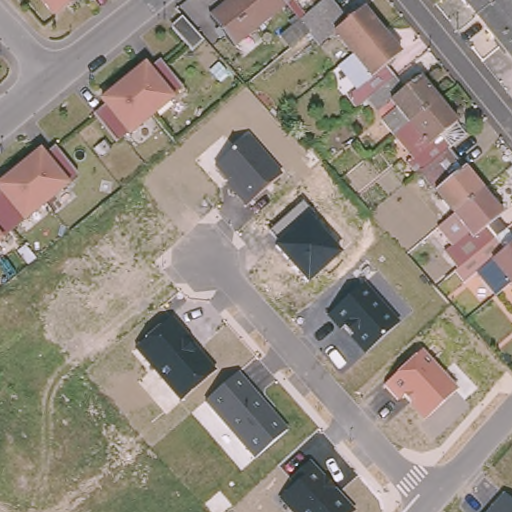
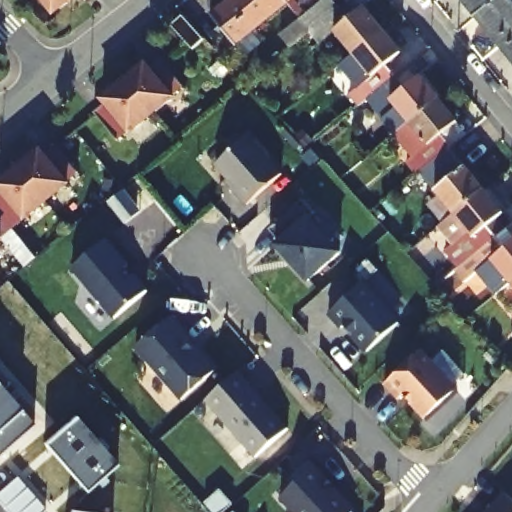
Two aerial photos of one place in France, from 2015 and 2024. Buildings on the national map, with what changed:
unchanged [(40,0),(72,0),(53,15),(40,0)]
unchanged [(230,44),(206,15),(225,0),(280,0),(282,2),(230,44)]
unchanged [(280,0),(284,0),(282,2),(280,0)]
unchanged [(461,0),(487,0),(472,12),(461,0)]
unchanged [(496,42),(472,12),(487,0),(512,0),(512,29),(496,42)]
unchanged [(334,27),(319,39),(309,28),(290,44),(280,32),(287,26),(281,19),(295,7),(300,13),(311,26),(338,4),(347,16),(363,3),(382,26),(352,50),(334,27)]
unchanged [(357,85),(338,62),(352,50),(382,26),(400,48),(385,61),(394,74),(367,96),(358,103),(348,92),(357,85)]
unchanged [(512,29),(512,62),(496,42),(512,29)]
unchanged [(163,64),(182,87),(171,97),(172,98),(151,116),(123,83),(145,65),(148,69),(160,60),(163,64)]
unchanged [(395,131),(367,96),(394,74),(402,84),(419,71),(439,95),(395,131)]
unchanged [(151,116),(129,134),(127,132),(116,142),(97,118),(93,114),(105,105),(101,100),(123,83),(151,116)]
unchanged [(420,168),(417,170),(407,159),(413,154),(395,131),(439,95),(457,118),(466,130),(450,143),(449,144),(420,168)]
unchanged [(239,204),(198,159),(240,123),(281,170),(239,204)]
unchanged [(454,210),(420,168),(449,144),(484,186),(454,210)]
unchanged [(66,183),(67,184),(45,202),(17,169),(40,151),(43,155),(55,146),(57,150),(77,173),(66,183)]
unchanged [(12,229),(0,215),(0,183),(17,169),(45,202),(12,229)]
unchanged [(452,241),(438,223),(454,210),(484,186),(502,209),(494,215),(503,227),(454,267),(444,275),(431,258),(452,241)]
unchanged [(302,281),(261,229),(296,199),(339,252),(302,281)]
unchanged [(0,239),(0,215),(12,229),(0,239)]
unchanged [(480,272),(485,268),(482,264),(464,279),(454,267),(503,227),(512,238),(512,277),(510,279),(496,291),(480,272)]
new [(105,239),(127,264),(124,265),(133,277),(135,275),(146,289),(115,317),(72,268),(105,239)]
unchanged [(362,354),(321,310),(357,277),(399,321),(362,354)]
unchanged [(510,279),(512,277),(512,281),(510,279)]
unchanged [(177,396),(132,348),(166,315),(210,366),(177,396)]
unchanged [(421,422),(382,383),(418,348),(458,387),(421,422)]
unchanged [(251,456),(200,401),(235,369),(284,429),(251,456)]
new [(34,424),(0,453),(0,384),(21,408),(34,424)]
new [(118,464),(87,492),(46,442),(76,416),(118,464)]
unchanged [(347,512),(290,512),(272,493),(306,462),(351,509),(347,512)]
new [(46,509),(43,512),(9,512),(0,502),(0,491),(17,476),(46,509)]
unchanged [(496,489),(512,503),(512,512),(477,512),(496,489)]
new [(82,512),(71,512),(71,510),(82,512)]

